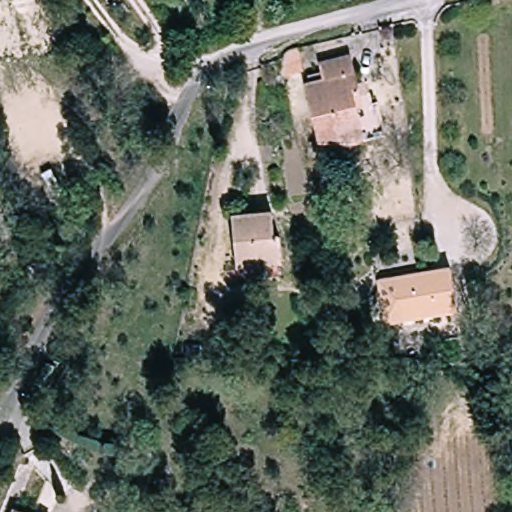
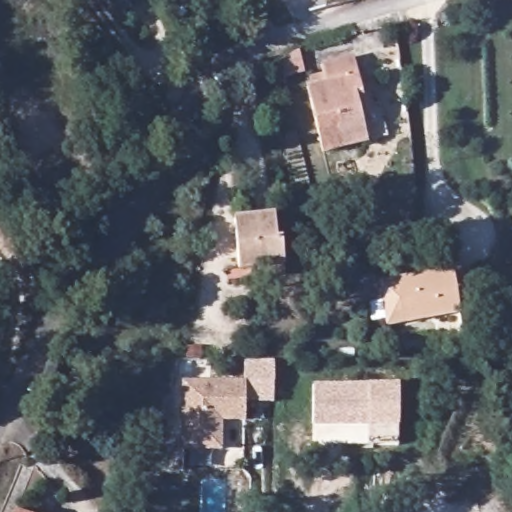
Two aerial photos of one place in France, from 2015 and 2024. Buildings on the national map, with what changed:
unchanged [(362,146),(321,149),(316,80),(336,80),(334,61),(371,60),(371,97),(372,127),(362,128),(362,146)]
unchanged [(233,273),(233,261),(236,209),(277,213),(276,239),(289,240),(287,263),(286,275),(233,273)]
unchanged [(456,273),(459,317),(398,322),(395,278),(456,273)]
new [(243,383),(245,361),(275,362),(274,404),(246,407),(246,423),(223,423),(222,453),(181,452),(182,381),(243,383)]
unchanged [(57,367),(49,384),(39,379),(47,363),(47,362),(57,367)]
new [(315,425),(315,386),(401,387),(401,426),(401,445),(370,445),(370,425),(315,425)]
unchanged [(19,511),(22,512),(18,512),(19,511)]

